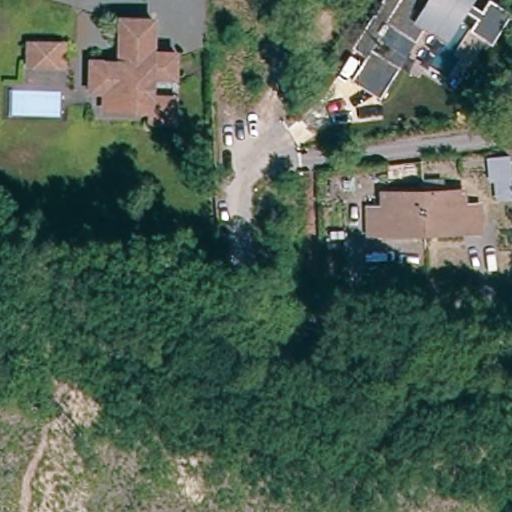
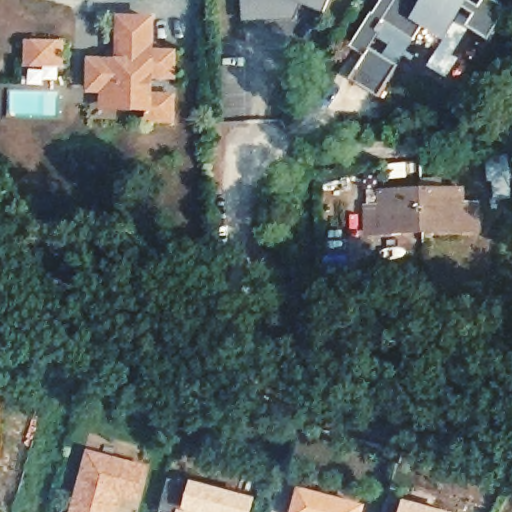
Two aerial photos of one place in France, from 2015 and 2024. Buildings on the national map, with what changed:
new [(323,11),(300,1),(293,17),(275,19),(243,20),(242,0),(328,0),(323,11)]
unchanged [(473,1),(482,7),(487,0),(495,0),(512,10),(512,11),(492,42),(470,26),(477,16),(467,10),(446,40),(423,28),(380,97),(352,78),(367,57),(352,47),(373,12),(376,14),(383,2),(381,0),(474,0),(473,1)]
unchanged [(106,90),(92,89),(94,61),(109,62),(122,62),(123,49),(124,19),(155,21),(154,53),(177,54),(176,78),(153,77),(152,97),(176,98),(175,122),(150,121),(150,108),(120,107),(106,106),(106,90)]
unchanged [(69,41),(68,67),(26,67),(26,40),(69,41)]
unchanged [(510,156),(512,168),(512,180),(511,180),(512,184),(512,201),(495,202),(493,182),(490,183),(486,159),(510,156)]
unchanged [(368,235),(367,210),(383,209),(382,194),(463,192),(464,207),(478,207),(479,231),(368,235)]
new [(150,466),(140,503),(122,498),(118,512),(71,512),(88,451),(150,466)]
new [(170,479),(194,482),(258,499),(254,512),(173,512),(162,509),(170,479)]
new [(370,507),(368,512),(294,512),(300,487),(370,507)]
new [(406,501),(442,512),(387,512),(390,502),(406,501)]

